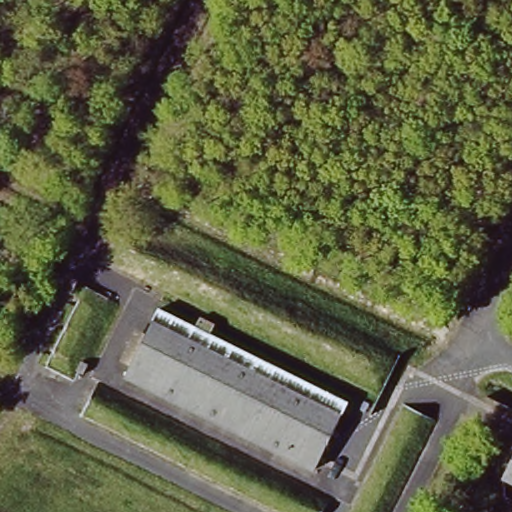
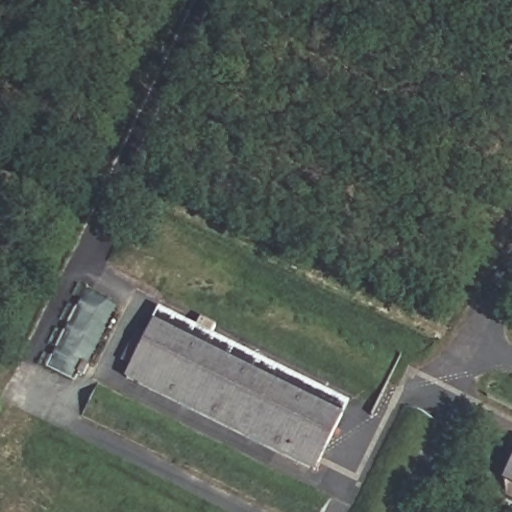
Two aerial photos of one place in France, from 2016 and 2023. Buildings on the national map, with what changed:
unchanged [(157,326),(332,412),(305,470),(127,384),(157,326)]

